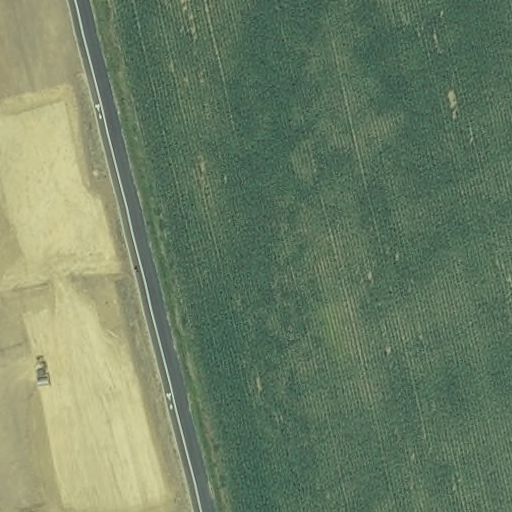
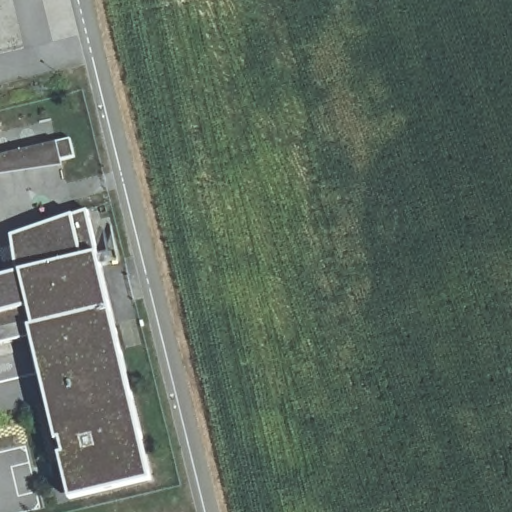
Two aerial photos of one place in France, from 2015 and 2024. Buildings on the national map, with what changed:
new [(13,232),(87,212),(148,487),(75,497),(66,458),(40,325),(0,336),(0,277),(18,274),(13,232)]

